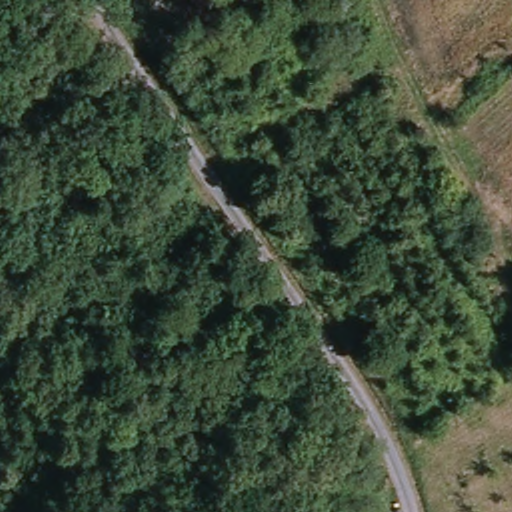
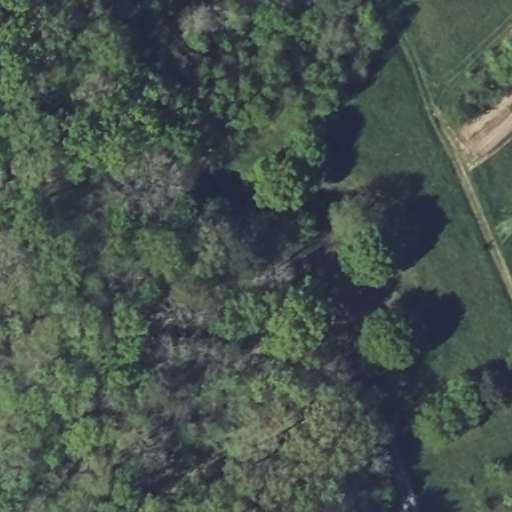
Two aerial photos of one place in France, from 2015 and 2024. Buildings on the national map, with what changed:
[]

